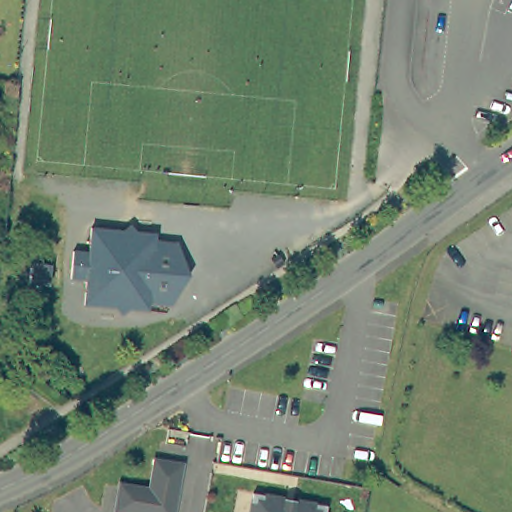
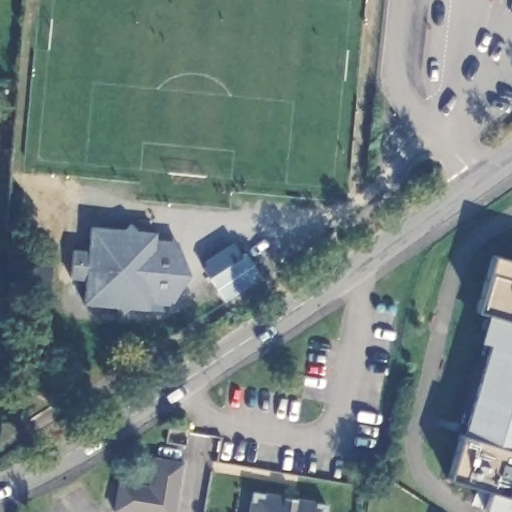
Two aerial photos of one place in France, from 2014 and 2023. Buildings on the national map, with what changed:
unchanged [(175,305),(152,303),(152,310),(132,309),(125,315),(119,308),(87,305),(89,281),(73,279),(75,252),(91,253),(93,228),(125,231),(132,225),(138,232),(158,233),(157,241),(180,243),(191,274),(191,275),(175,305)]
new [(249,254),(265,279),(228,303),(212,278),(249,254)]
new [(490,490),(449,478),(488,344),(480,342),(488,313),(478,310),(494,256),(512,261),(512,512),(499,512),(484,507),(490,490)]
unchanged [(29,285),(31,266),(46,267),(44,286),(29,285)]
unchanged [(182,463),(176,492),(177,496),(174,512),(112,512),(118,482),(147,488),(153,457),(182,463)]
unchanged [(252,493),(326,506),(325,512),(248,512),(252,493)]

